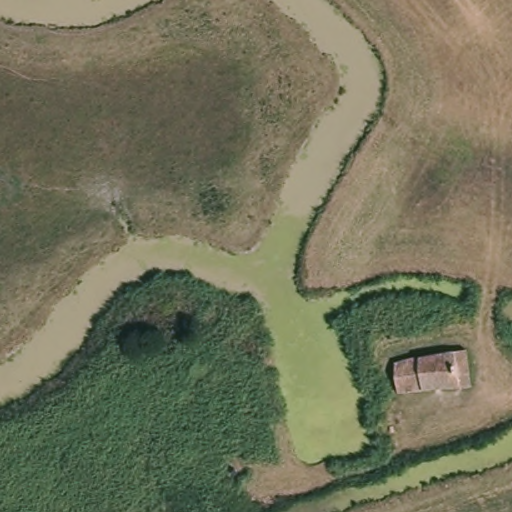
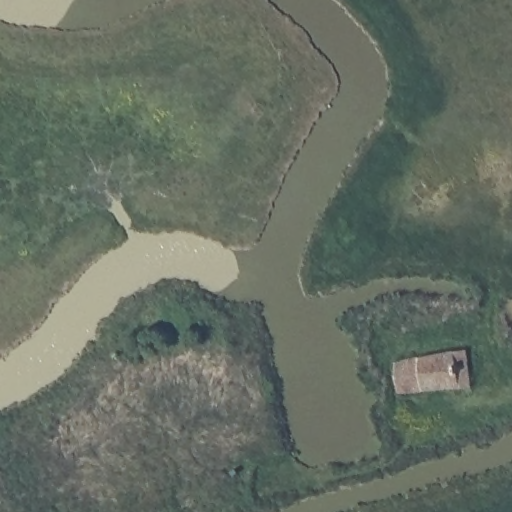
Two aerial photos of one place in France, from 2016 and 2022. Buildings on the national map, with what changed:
unchanged [(467,354),(470,380),(396,391),(394,366),(467,354)]

